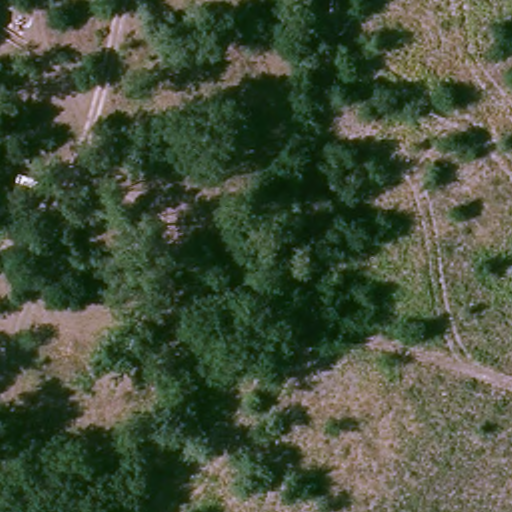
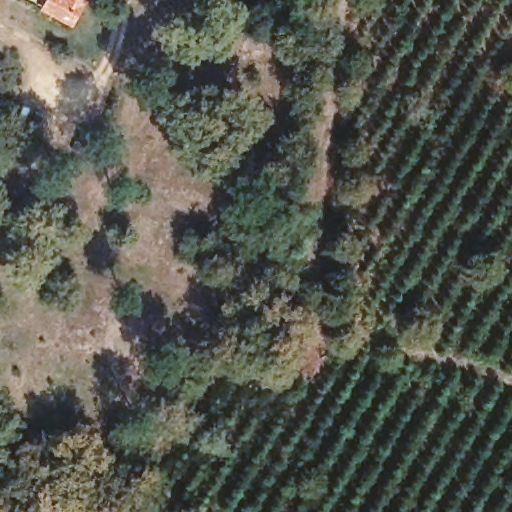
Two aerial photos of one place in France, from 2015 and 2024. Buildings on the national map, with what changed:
new [(74,14),(79,17),(73,28),(40,10),(45,0),(82,0),(74,14)]

